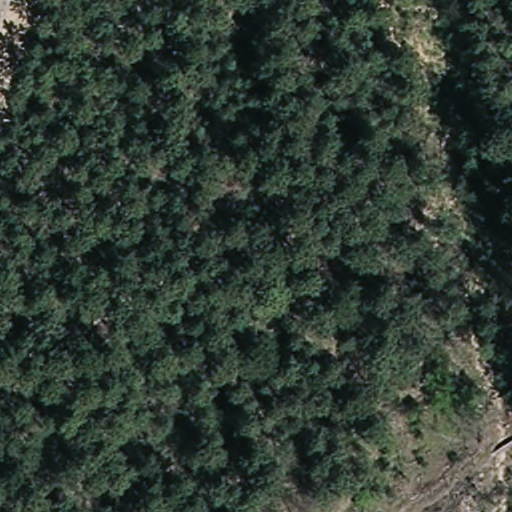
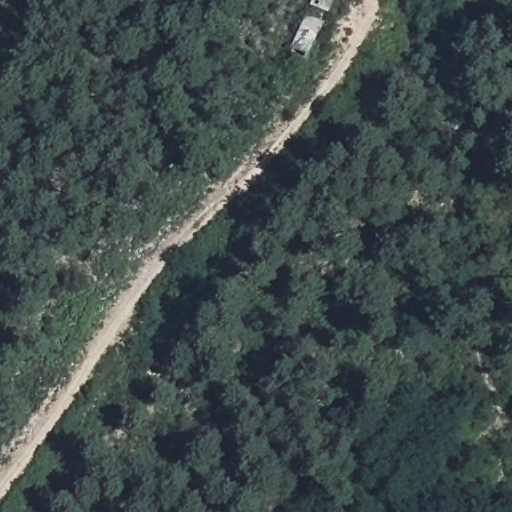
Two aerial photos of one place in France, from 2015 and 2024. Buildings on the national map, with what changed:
unchanged [(325,0),(319,13),(300,4),(302,0),(325,0)]
unchanged [(296,63),(278,54),(296,14),(314,23),(296,63)]

